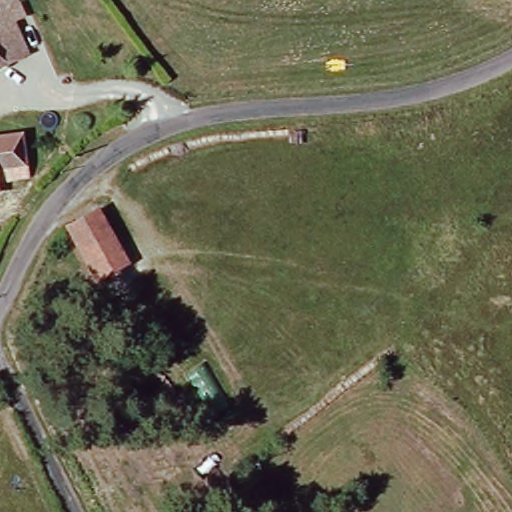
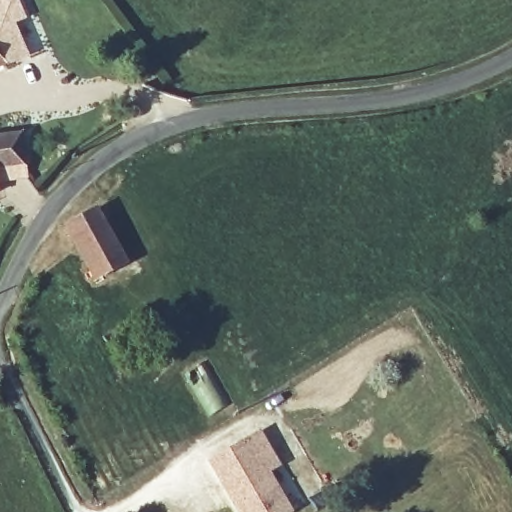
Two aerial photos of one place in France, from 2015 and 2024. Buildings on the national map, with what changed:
new [(15,23),(28,55),(0,67),(0,0),(19,0),(26,17),(15,23)]
demolished [(25,58),(0,68),(0,15),(8,12),(25,58)]
unchanged [(28,175),(0,181),(0,138),(19,134),(28,175)]
unchanged [(91,282),(63,228),(94,212),(124,264),(91,282)]
new [(292,511),(291,512),(236,512),(207,460),(260,429),(280,465),(269,471),(292,511)]

